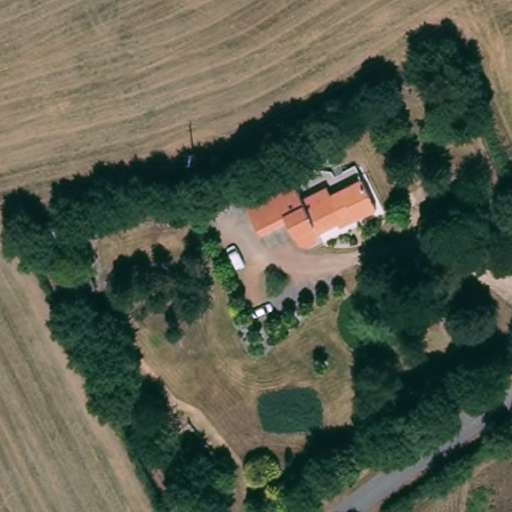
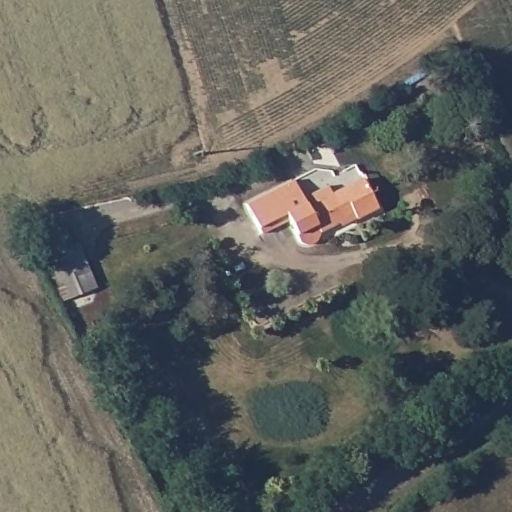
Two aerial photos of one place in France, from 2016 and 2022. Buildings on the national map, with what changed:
unchanged [(301,191),(323,180),(329,191),(361,175),(376,207),(318,233),(317,239),(312,244),(307,245),(301,242),(296,237),(285,215),(260,227),(247,199),(294,176),(301,191)]
unchanged [(73,267),(89,261),(98,286),(62,297),(46,252),(63,243),(73,267)]

